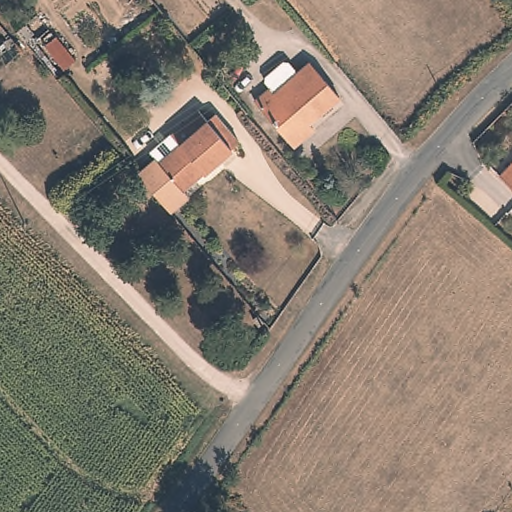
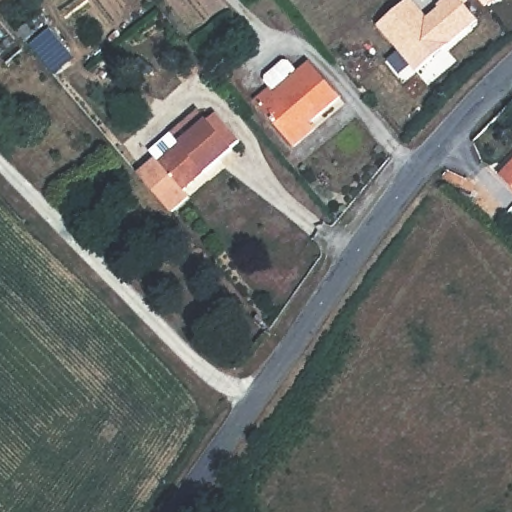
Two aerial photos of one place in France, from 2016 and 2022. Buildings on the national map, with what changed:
demolished [(193,38),(159,0),(205,0),(217,13),(193,38)]
new [(411,0),(426,19),(438,9),(437,6),(444,0),(460,0),(477,21),(416,73),(377,27),(407,0),(411,0)]
new [(477,0),(496,0),(485,9),(477,0)]
unchanged [(21,66),(0,39),(0,4),(37,53),(21,66)]
unchanged [(275,95),(308,63),(338,97),(308,123),(314,129),(295,147),(255,99),(267,87),(275,95)]
unchanged [(205,121),(214,113),(237,140),(227,149),(230,153),(207,174),(202,170),(177,192),(181,196),(165,210),(132,172),(154,153),(159,160),(179,144),(169,133),(184,120),(195,110),(205,121)]
unchanged [(500,176),(512,163),(512,188),(500,176)]

